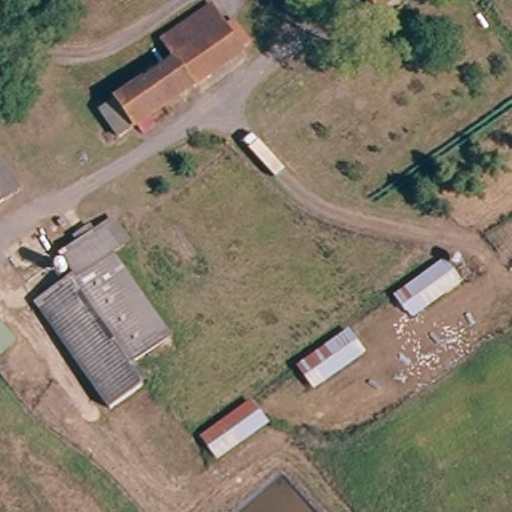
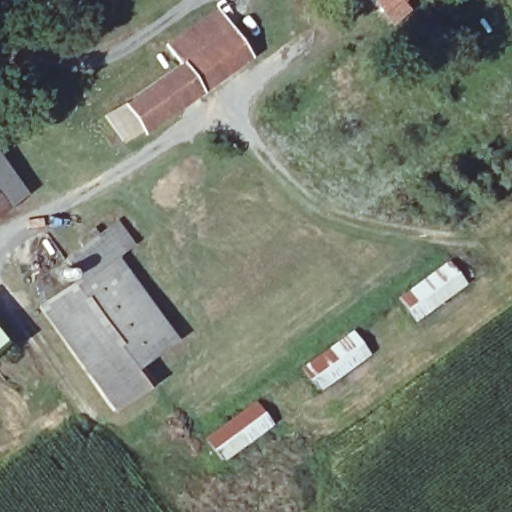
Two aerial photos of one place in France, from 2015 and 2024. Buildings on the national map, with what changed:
unchanged [(376,11),(366,0),(388,0),(376,11)]
unchanged [(393,1),(392,0),(395,0),(393,1)]
unchanged [(215,9),(227,32),(236,26),(237,30),(240,28),(250,45),(239,52),(242,57),(196,87),(195,84),(120,132),(104,107),(174,62),(164,44),(215,9)]
unchanged [(0,200),(0,163),(18,188),(0,200)]
unchanged [(110,259),(77,283),(62,262),(80,249),(74,241),(91,229),(97,237),(116,223),(131,244),(110,259)]
unchanged [(392,297),(445,257),(462,279),(412,321),(392,297)]
unchanged [(161,331),(121,362),(140,390),(110,412),(38,312),(77,283),(110,259),(161,331)]
unchanged [(293,365),(347,326),(365,353),(315,389),(293,365)]
unchanged [(0,359),(0,330),(14,348),(0,359)]
unchanged [(197,435),(251,395),(270,422),(216,462),(197,435)]

